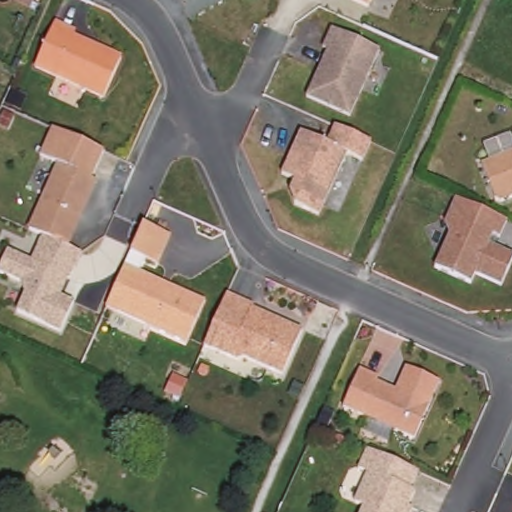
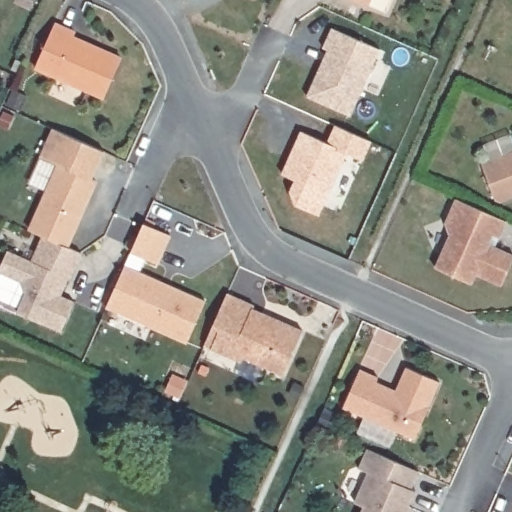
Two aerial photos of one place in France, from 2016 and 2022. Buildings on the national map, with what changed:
unchanged [(371,9),(350,0),(374,0),(371,9)]
unchanged [(122,60),(107,102),(33,70),(55,23),(122,60)]
unchanged [(380,50),(352,117),(306,99),(326,51),(320,49),(328,30),(380,50)]
unchanged [(374,140),(364,162),(346,155),(319,217),(297,209),(289,195),(295,183),(280,176),(299,130),(325,145),(334,125),(374,140)]
unchanged [(38,159),(49,127),(104,150),(91,180),(57,165),(38,159)]
unchanged [(480,164),(512,154),(512,200),(495,206),(480,164)]
unchanged [(98,182),(73,248),(84,254),(67,297),(78,301),(62,335),(18,317),(23,297),(18,281),(0,276),(0,268),(9,250),(30,258),(40,236),(29,230),(57,165),(98,182)]
unchanged [(503,240),(497,237),(492,246),(512,256),(512,267),(503,290),(477,278),(473,290),(433,272),(446,240),(443,221),(453,198),(510,224),(503,240)]
unchanged [(171,235),(159,267),(145,260),(139,272),(206,301),(188,344),(106,308),(144,225),(171,235)]
unchanged [(303,331),(287,380),(200,346),(227,295),(303,331)]
unchanged [(396,389),(406,366),(440,382),(415,442),(341,409),(359,371),(396,389)]
unchanged [(409,512),(360,512),(362,508),(352,503),(366,473),(357,468),(365,450),(420,475),(409,512)]

